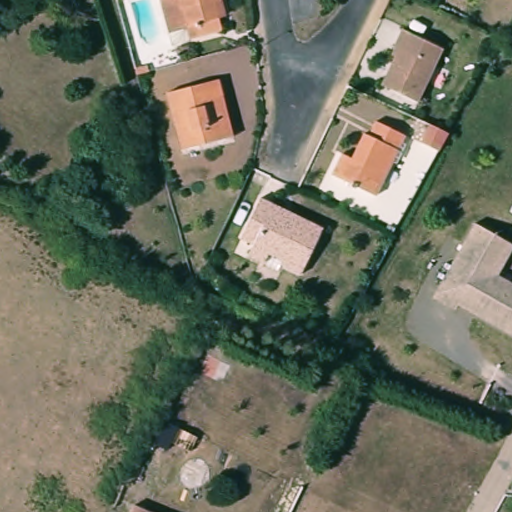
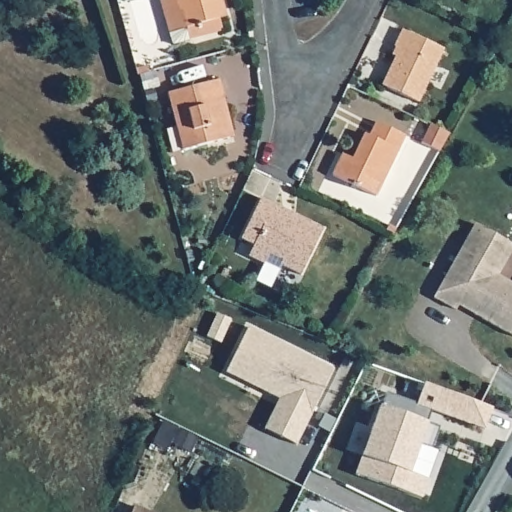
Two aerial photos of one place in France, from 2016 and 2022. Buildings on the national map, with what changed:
unchanged [(220,22),(187,31),(184,20),(171,23),(164,0),(223,0),(223,2),(216,4),(220,22)]
unchanged [(470,0),(472,0),(471,1),(470,0)]
unchanged [(442,49),(416,105),(380,86),(392,59),(387,56),(399,30),(442,49)]
unchanged [(177,131),(169,96),(220,82),(224,99),(228,113),(223,115),(230,141),(199,149),(183,152),(177,131)]
unchanged [(351,157),(365,130),(371,133),(379,119),(408,134),(374,197),(329,174),(341,152),(351,157)]
unchanged [(265,265),(264,267),(248,260),(254,247),(240,241),(259,199),(274,207),(309,225),(310,222),(324,231),(301,278),(280,268),(279,272),(265,265)]
unchanged [(512,244),(512,249),(498,272),(512,280),(512,337),(458,305),(454,310),(432,295),(474,221),(512,244)]
new [(226,372),(230,363),(248,327),(302,353),(333,369),(326,382),(296,445),(280,437),(264,429),(280,398),(268,393),(226,372)]
new [(381,407),(386,392),(417,403),(424,383),(492,407),(484,428),(432,410),(427,423),(439,427),(431,448),(419,444),(409,472),(428,479),(421,498),(355,474),(380,406),(381,407)]
unchanged [(135,507),(147,512),(133,512),(135,507)]

